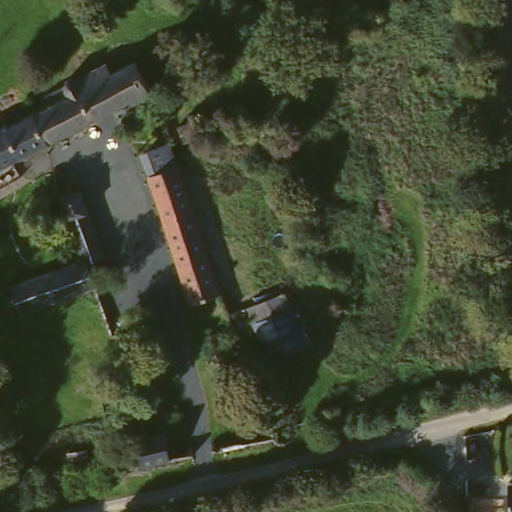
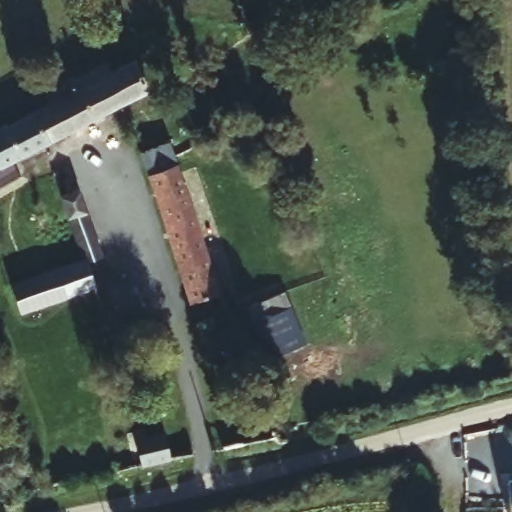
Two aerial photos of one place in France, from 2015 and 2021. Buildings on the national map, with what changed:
unchanged [(51,89),(47,81),(65,74),(76,69),(82,74),(109,62),(113,72),(135,61),(149,93),(39,145),(23,103),(51,89)]
unchanged [(39,145),(0,163),(0,114),(23,103),(39,145)]
unchanged [(128,126),(155,116),(160,130),(160,131),(164,138),(209,261),(182,269),(137,149),(128,126)]
unchanged [(67,261),(85,255),(62,193),(80,187),(106,254),(87,260),(96,285),(77,292),(27,310),(17,280),(67,261)]
unchanged [(206,327),(182,269),(209,261),(209,262),(230,319),(206,327)]
unchanged [(245,293),(280,282),(299,332),(262,345),(245,293)]
unchanged [(252,443),(247,430),(265,426),(268,438),(270,445),(254,449),(252,443)]
unchanged [(127,443),(154,438),(158,461),(130,467),(127,443)]
unchanged [(511,482),(512,482),(512,494),(511,482)]

